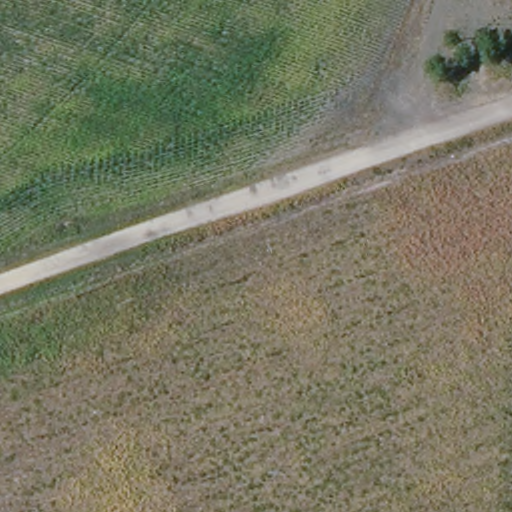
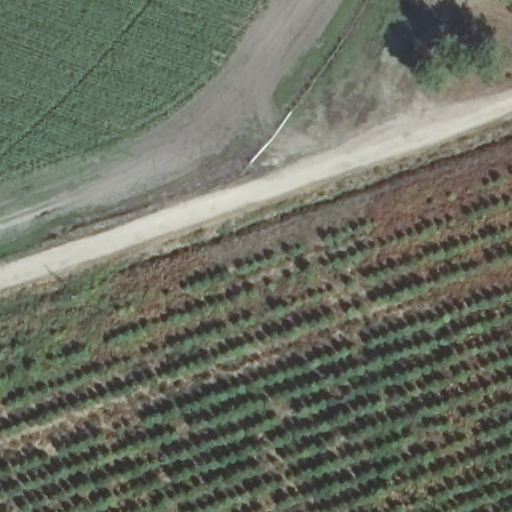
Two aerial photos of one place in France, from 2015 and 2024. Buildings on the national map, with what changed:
[]

